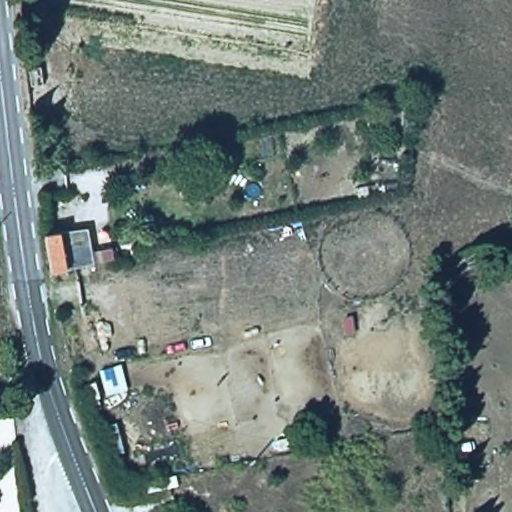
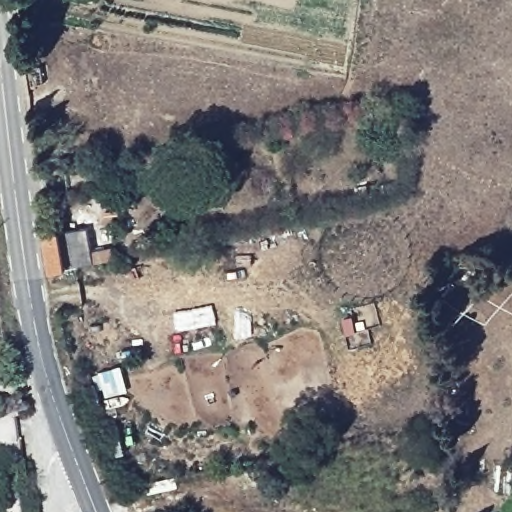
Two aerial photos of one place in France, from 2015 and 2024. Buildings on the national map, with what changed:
unchanged [(87,228),(90,251),(111,247),(112,259),(49,272),(44,234),(87,228)]

